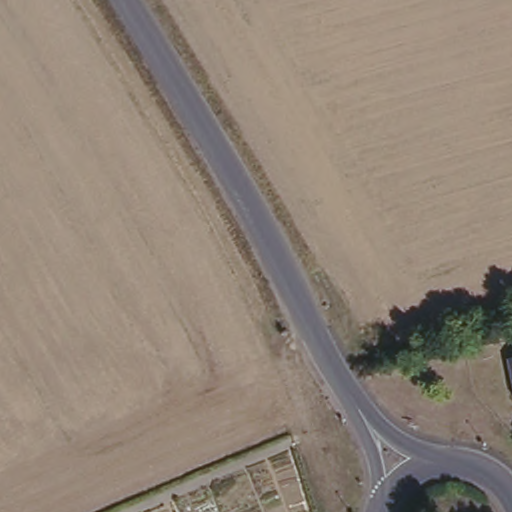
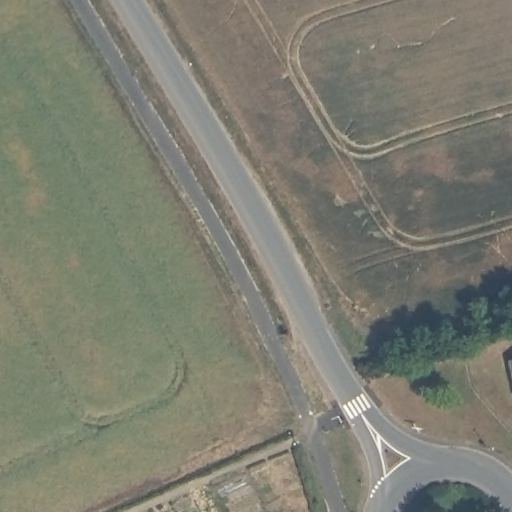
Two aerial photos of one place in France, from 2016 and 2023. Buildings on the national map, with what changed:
unchanged [(512,358),(512,377),(508,359),(512,358)]

